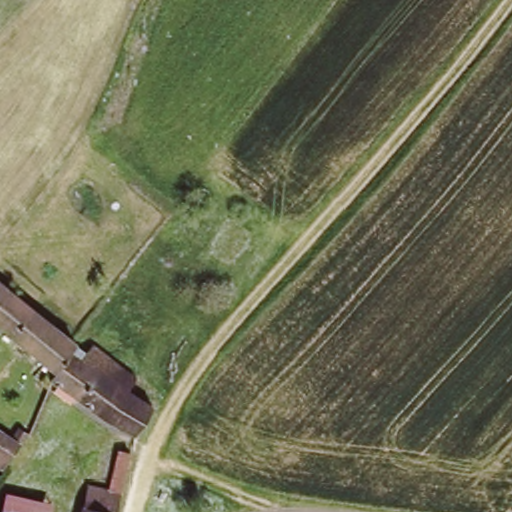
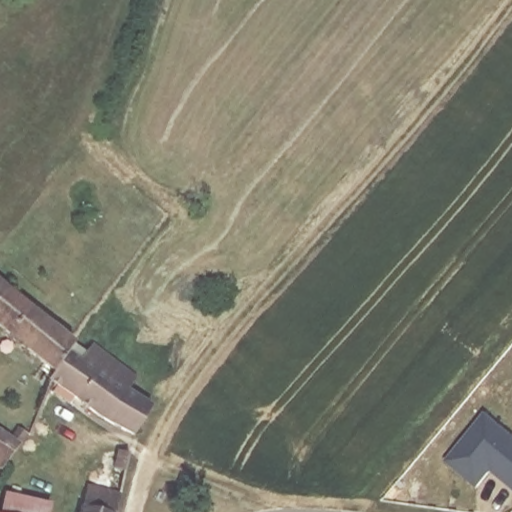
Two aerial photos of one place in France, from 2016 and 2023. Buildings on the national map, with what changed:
unchanged [(58,331),(54,336),(40,360),(0,327),(0,282),(58,331)]
unchanged [(40,360),(54,336),(65,343),(79,324),(124,359),(113,373),(137,393),(115,421),(35,367),(40,360)]
new [(445,462),(485,415),(512,438),(512,490),(511,489),(490,472),(476,489),(445,462)]
unchanged [(0,459),(0,427),(8,434),(17,424),(24,430),(15,447),(4,462),(0,459)]
unchanged [(125,492),(121,512),(84,512),(90,486),(111,491),(121,446),(136,449),(125,492)]
unchanged [(10,493),(52,505),(51,512),(4,512),(10,493)]

